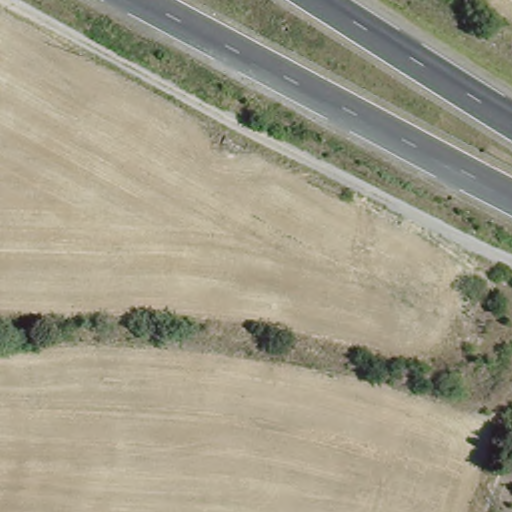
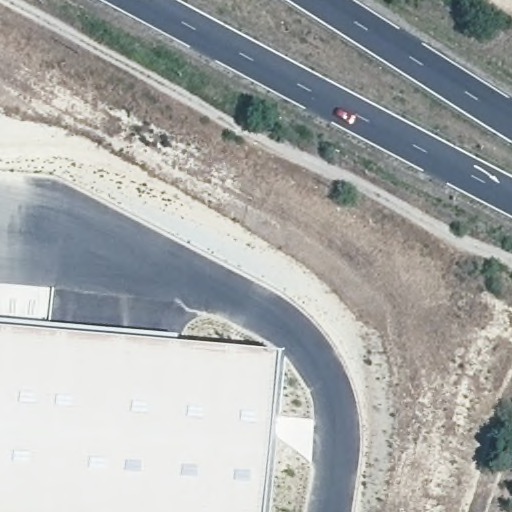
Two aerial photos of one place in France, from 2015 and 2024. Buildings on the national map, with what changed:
new [(181,334),(181,341),(284,353),(277,433),(269,512),(0,512),(0,317),(5,317),(181,334)]

